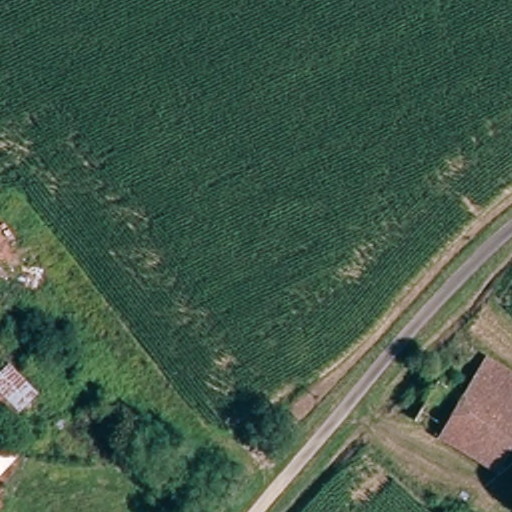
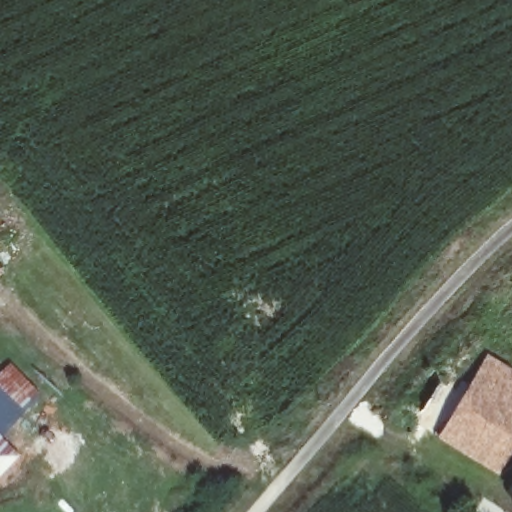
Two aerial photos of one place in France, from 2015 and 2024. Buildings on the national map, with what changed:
unchanged [(512,374),(512,442),(495,471),(440,436),(489,360),(512,374)]
unchanged [(21,457),(0,482),(0,375),(12,364),(41,394),(1,434),(21,457)]

